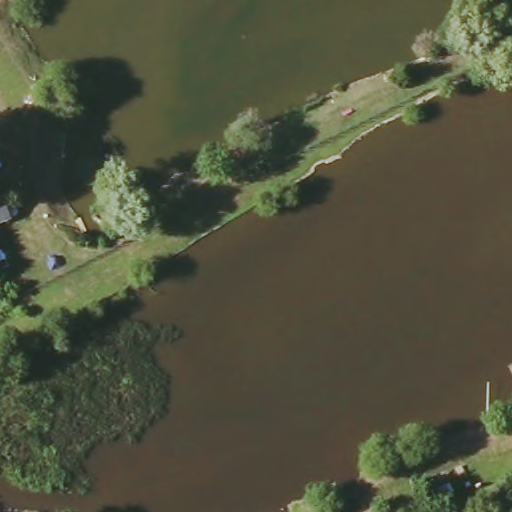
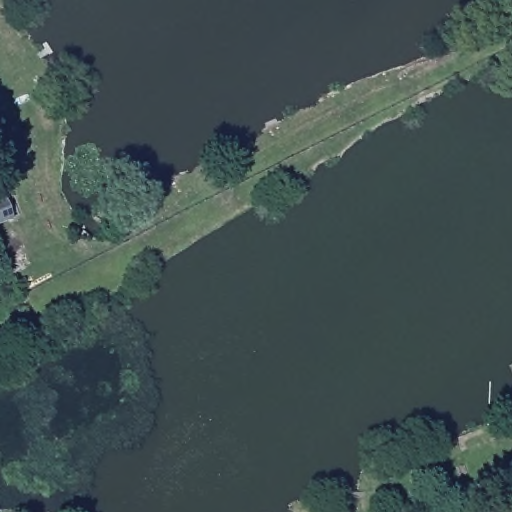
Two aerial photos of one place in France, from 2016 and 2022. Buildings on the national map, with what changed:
unchanged [(0,224),(0,201),(1,201),(8,221),(0,224)]

